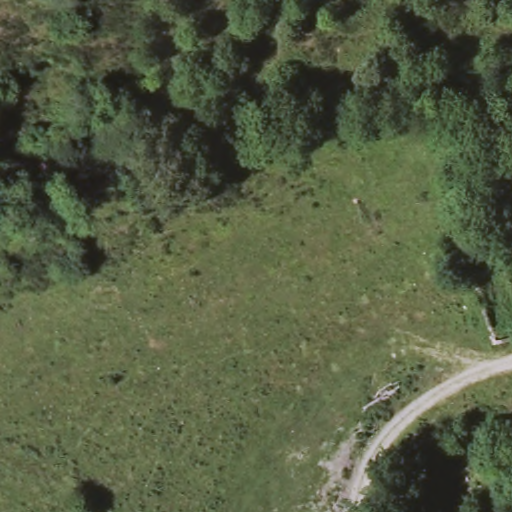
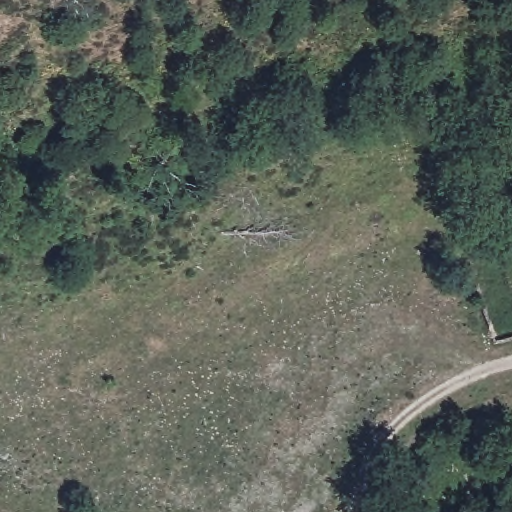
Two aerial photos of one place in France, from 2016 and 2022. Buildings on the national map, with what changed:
[]

